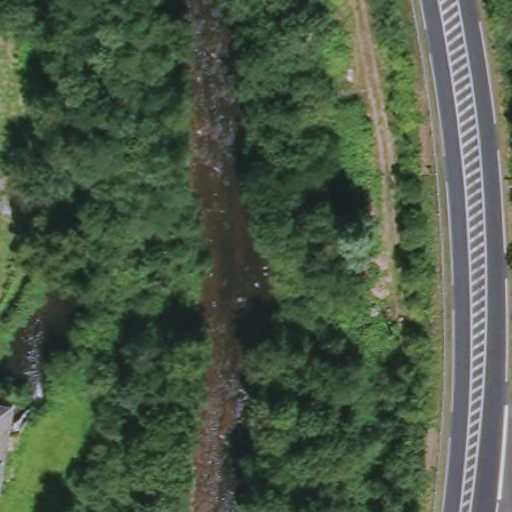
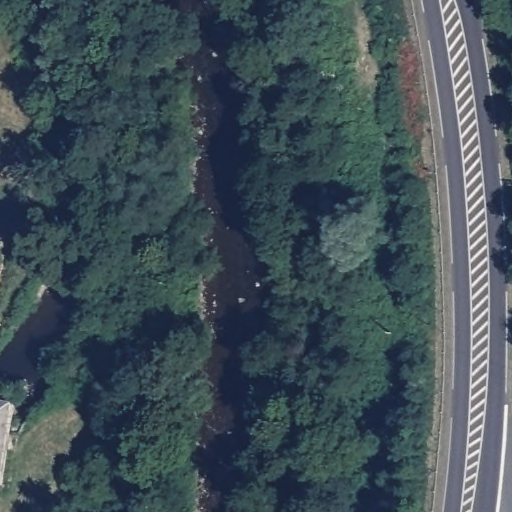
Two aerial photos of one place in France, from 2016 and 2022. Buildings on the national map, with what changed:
unchanged [(0,454),(0,405),(7,406),(2,440),(0,454)]

